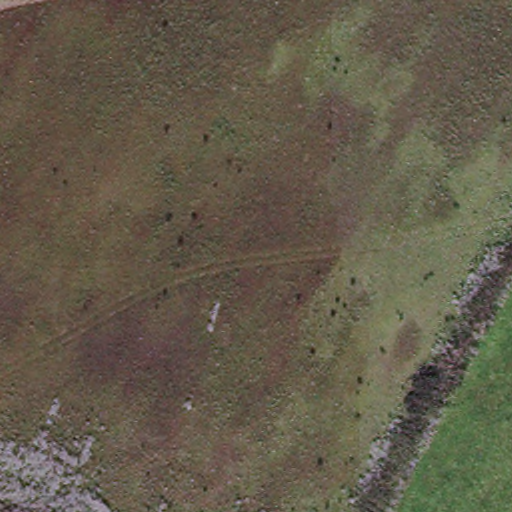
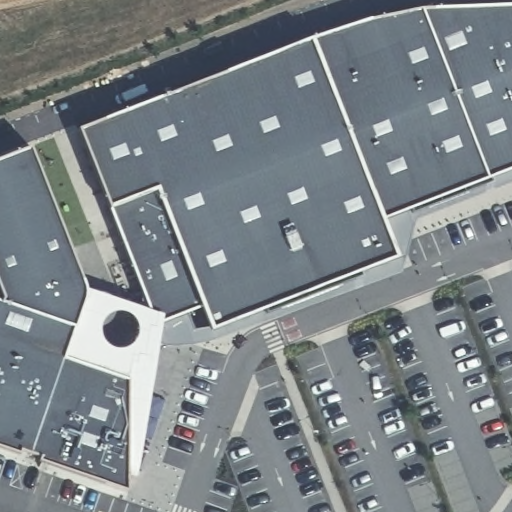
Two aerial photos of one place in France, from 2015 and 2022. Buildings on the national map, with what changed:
new [(397,258),(210,331),(199,305),(154,323),(110,205),(80,128),(312,39),(370,20),(423,9),(512,6),(512,168),(382,218),(397,258)]
new [(40,460),(42,456),(20,447),(18,452),(0,446),(0,159),(30,147),(85,289),(72,326),(62,358),(125,381),(127,488),(40,460)]

